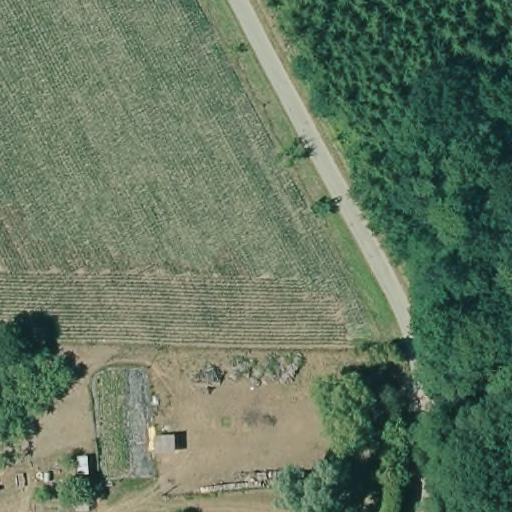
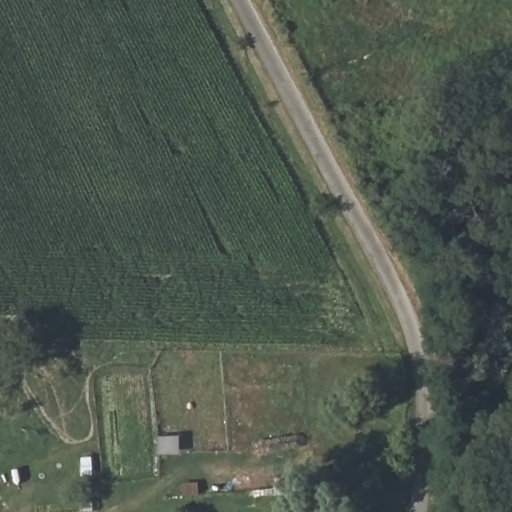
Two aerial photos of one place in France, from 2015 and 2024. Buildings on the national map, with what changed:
[]

